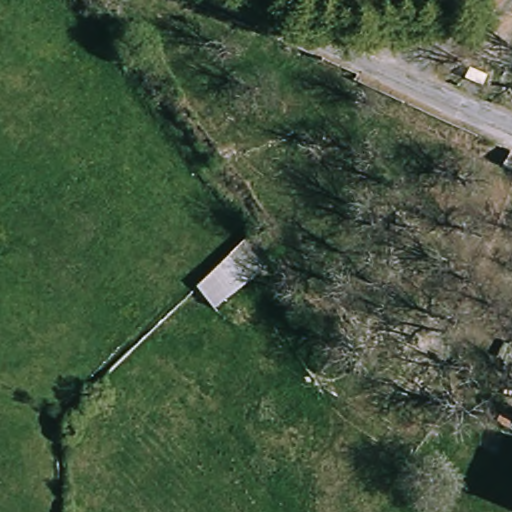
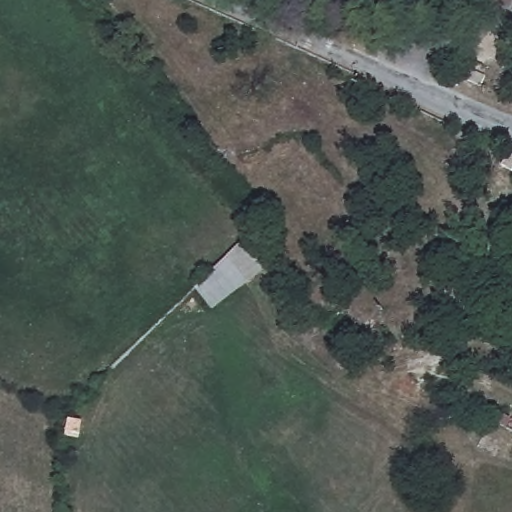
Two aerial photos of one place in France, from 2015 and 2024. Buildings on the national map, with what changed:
unchanged [(242,244),(260,266),(217,311),(197,287),(242,244)]

